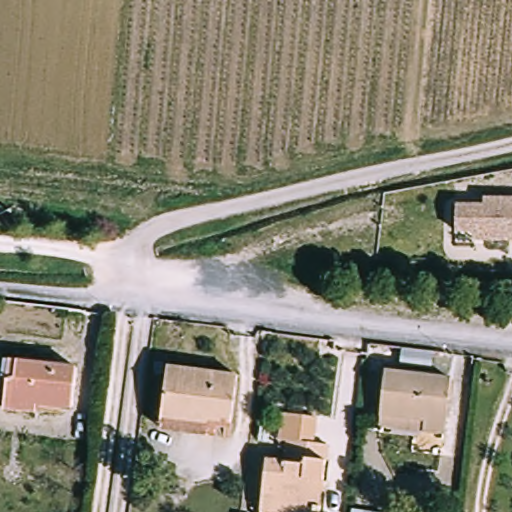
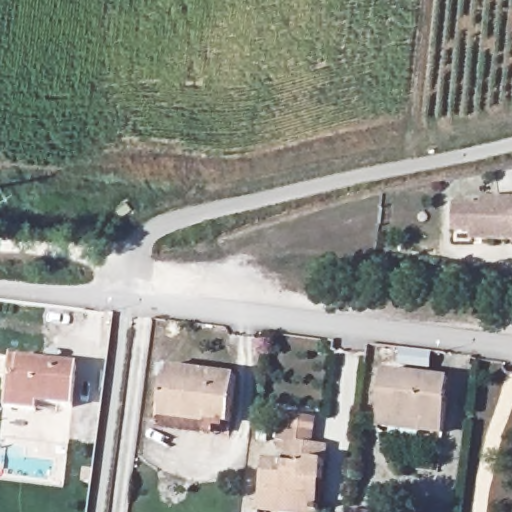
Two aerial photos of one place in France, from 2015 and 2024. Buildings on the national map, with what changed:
unchanged [(481,240),(481,232),(454,232),(454,205),(482,205),(482,197),(512,197),(512,240),(481,240)]
unchanged [(74,370),(68,412),(31,408),(31,413),(3,410),(7,376),(20,377),(22,364),(74,370)]
unchanged [(157,433),(158,422),(164,373),(230,378),(225,429),(210,428),(208,440),(157,433)]
unchanged [(373,434),(376,416),(382,373),(443,381),(437,422),(416,421),(414,438),(373,434)]
unchanged [(275,463),(278,419),(312,420),(312,443),(323,442),(321,464),(315,512),(259,512),(262,463),(275,463)]

